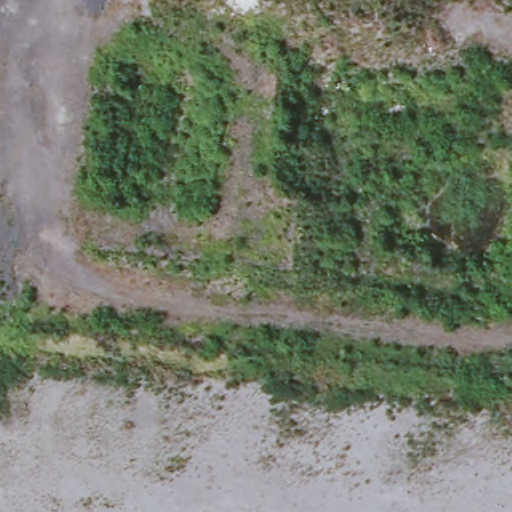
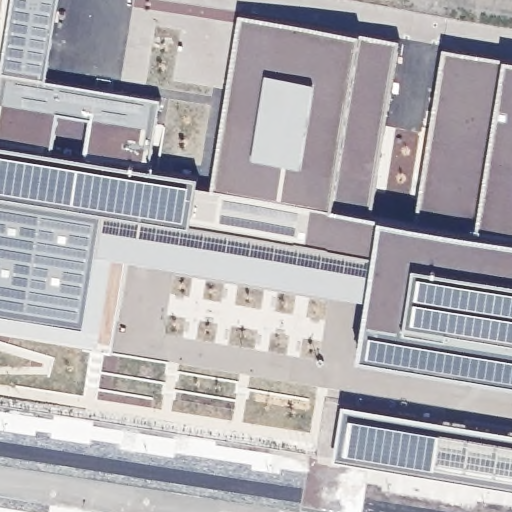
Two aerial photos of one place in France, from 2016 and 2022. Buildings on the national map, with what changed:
new [(364,305),(112,256),(102,345),(0,329),(0,101),(17,0),(61,0),(52,77),(165,93),(150,163),(209,174),(237,16),(398,45),(369,220),(415,233),(442,54),(512,65),(512,394),(351,366),(364,305)]
demolished [(10,360),(10,361),(9,374),(15,375),(13,388),(7,387),(4,418),(10,419),(8,432),(2,431),(0,448),(0,360),(10,360)]
demolished [(209,491),(210,480),(217,480),(220,458),(212,458),(213,447),(220,448),(225,404),(218,403),(219,392),(227,393),(227,383),(290,390),(289,400),(297,400),(295,411),(288,410),(283,455),(291,455),(290,466),(282,465),(280,487),(287,488),(286,500),(279,498),(277,512),(214,512),(216,491),(209,491)]
demolished [(199,400),(197,428),(187,427),(190,398),(199,400)]
demolished [(358,498),(360,487),(365,488),(367,475),(347,473),(349,463),(368,465),(370,443),(364,442),(365,431),(371,432),(372,420),(354,417),(355,407),(374,410),(375,400),(375,399),(437,405),(437,406),(430,471),(439,472),(437,482),(430,481),(428,493),(450,496),(448,507),(427,505),(426,512),(363,512),(365,499),(358,498)]
demolished [(21,403),(20,417),(10,416),(12,402),(21,403)]
new [(340,411),(512,441),(512,495),(330,465),(340,411)]
demolished [(469,412),(468,422),(459,422),(460,411),(469,412)]
demolished [(322,413),(320,442),(310,440),(312,412),(322,413)]
demolished [(442,427),(435,427),(437,416),(444,417),(442,427)]
demolished [(351,438),(350,452),(339,450),(340,437),(351,438)]
demolished [(17,439),(15,453),(6,452),(7,438),(17,439)]
demolished [(454,451),(434,449),(435,438),(455,440),(454,451)]
demolished [(5,457),(5,468),(0,468),(0,456),(5,457)]
demolished [(464,463),(462,477),(452,475),(454,462),(464,463)]
demolished [(12,474),(12,487),(2,486),(4,473),(12,474)]
demolished [(512,479),(512,512),(508,512),(510,499),(512,479)]
demolished [(189,512),(177,512),(182,485),(192,486),(189,512)]
demolished [(510,499),(502,498),(504,486),(510,486),(510,499)]
demolished [(0,505),(0,490),(2,490),(0,505)]
demolished [(345,494),(344,507),(334,505),(335,492),(345,494)]
demolished [(119,505),(118,512),(45,512),(47,497),(119,505)]
demolished [(313,512),(303,512),(305,497),(314,499),(313,512)]
demolished [(497,498),(495,512),(484,512),(485,497),(497,498)]
demolished [(45,511),(44,512),(23,512),(24,509),(45,511)]

